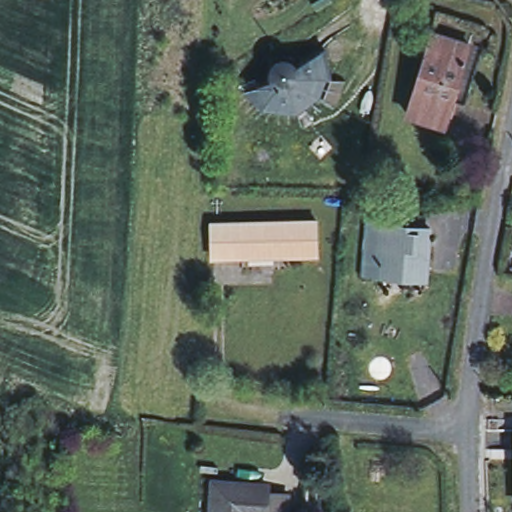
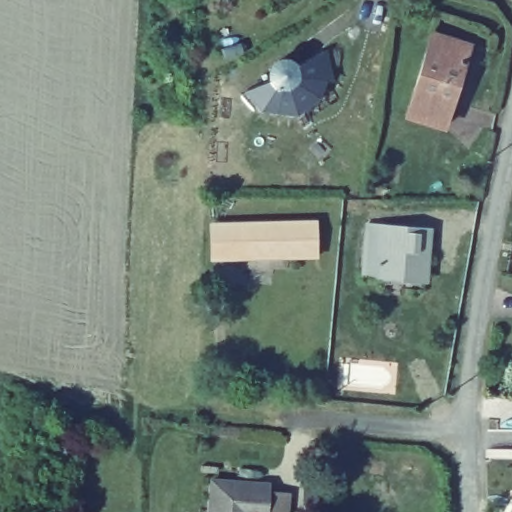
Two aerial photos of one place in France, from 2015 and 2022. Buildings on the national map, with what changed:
unchanged [(470,45),(452,101),(415,89),(432,33),(470,45)]
unchanged [(275,78),(275,73),(277,68),(280,66),(285,64),(290,64),(294,65),(300,70),(324,57),(329,54),(335,85),(329,84),(322,100),(300,119),(264,114),(250,95),(275,82),(275,78)]
unchanged [(452,101),(444,126),(407,114),(415,89),(452,101)]
unchanged [(317,255),(286,256),(285,250),(232,252),(212,252),(212,223),(230,223),(315,220),(317,255)]
unchanged [(424,282),(365,277),(369,225),(384,226),(380,268),(425,272),(424,282)]
unchanged [(429,230),(425,272),(380,268),(384,226),(429,230)]
unchanged [(376,365),(377,391),(347,393),(345,365),(376,365)]
unchanged [(511,495),(512,464),(512,444),(512,495),(511,495)]
unchanged [(207,480),(261,484),(260,490),(291,491),(291,512),(205,512),(207,480)]

